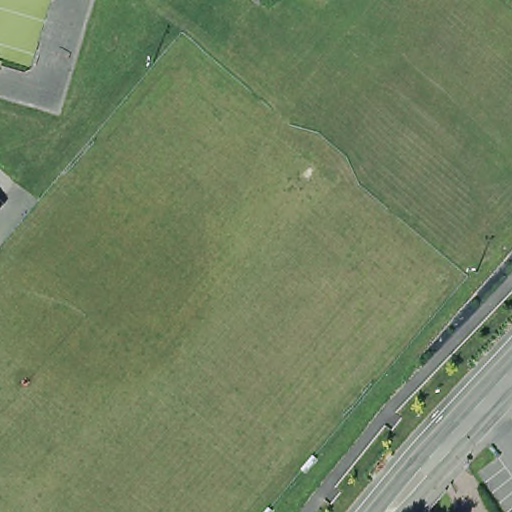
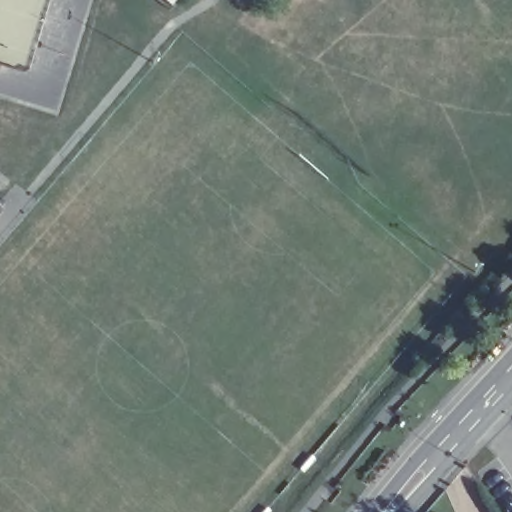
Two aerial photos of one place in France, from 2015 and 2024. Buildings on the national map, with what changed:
unchanged [(12,207),(6,216),(0,223),(0,197),(12,207)]

